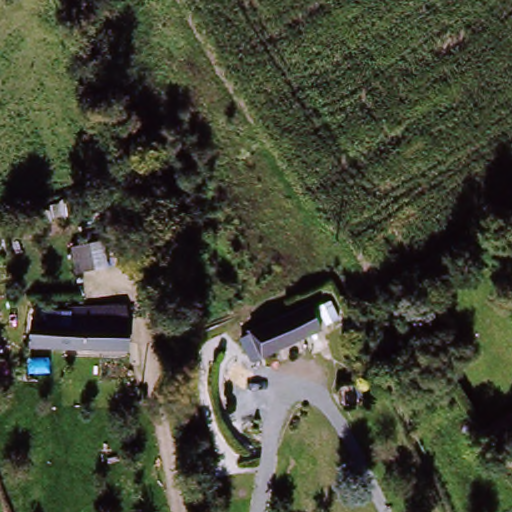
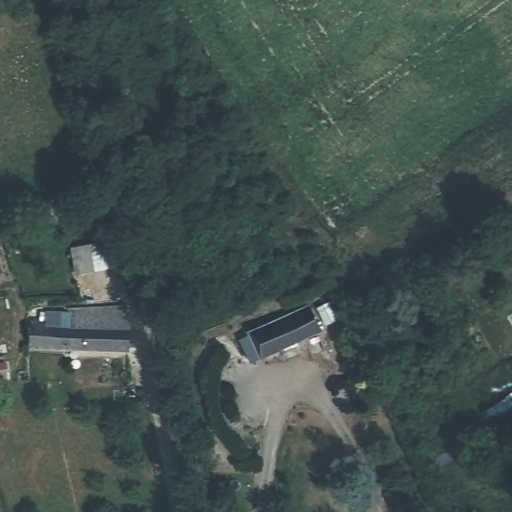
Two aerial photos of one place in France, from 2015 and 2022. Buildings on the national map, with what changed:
unchanged [(508,220),(512,219),(512,229),(508,220)]
unchanged [(251,335),(310,309),(320,332),(289,345),(262,357),(251,335)]
unchanged [(134,350),(62,347),(42,346),(44,323),(63,324),(135,327),(134,350)]
unchanged [(488,428),(512,414),(512,443),(501,449),(488,428)]

